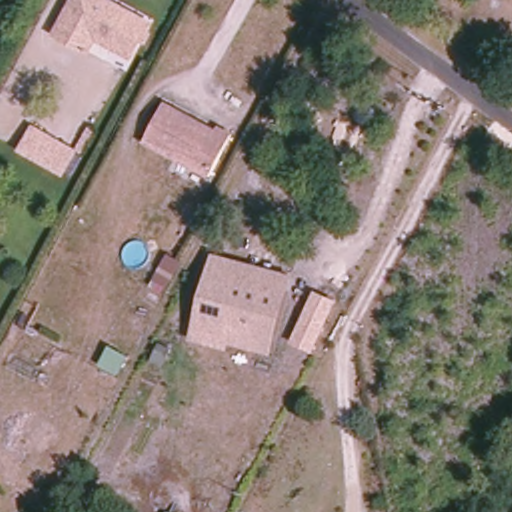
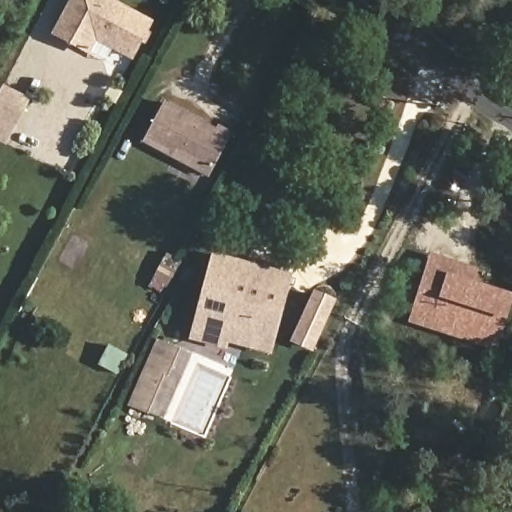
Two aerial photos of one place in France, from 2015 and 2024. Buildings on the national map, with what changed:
unchanged [(124,55),(89,38),(81,49),(49,32),(67,0),(108,0),(112,2),(141,20),(124,55)]
unchanged [(136,140),(154,101),(205,129),(207,123),(222,131),(200,174),(136,140)]
unchanged [(89,129),(76,153),(67,149),(82,124),(89,129)]
unchanged [(12,148),(24,127),(67,149),(55,172),(12,148)]
unchanged [(283,288),(212,269),(217,253),(287,272),(283,288)]
new [(480,268),(477,282),(512,293),(512,305),(507,321),(496,350),(408,322),(431,253),(480,268)]
unchanged [(195,336),(196,330),(212,269),(283,288),(272,329),(267,349),(224,337),(222,343),(195,336)]
unchanged [(315,353),(292,342),(317,289),(340,300),(315,353)]
new [(157,339),(192,354),(164,419),(129,404),(157,339)]

